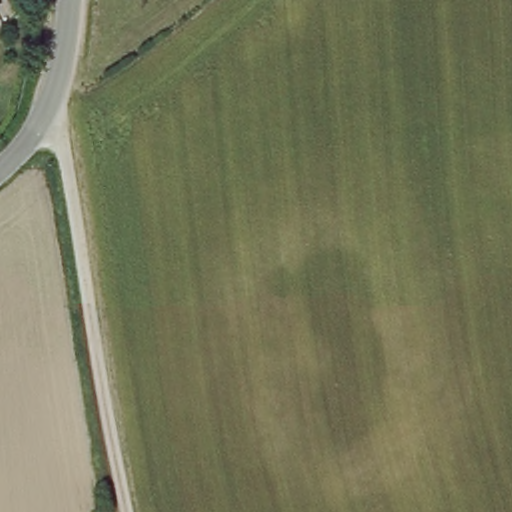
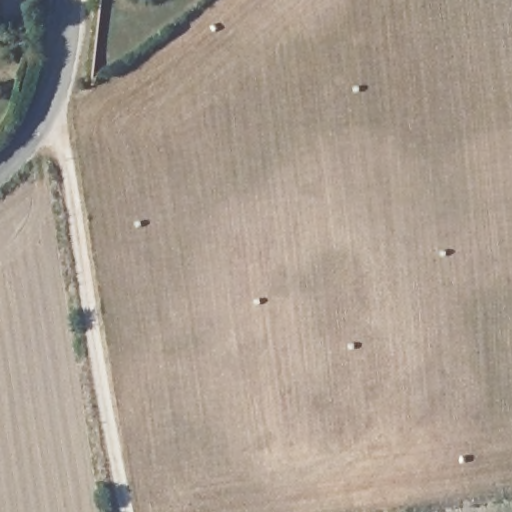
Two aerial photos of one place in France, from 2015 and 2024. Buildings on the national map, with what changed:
[]

